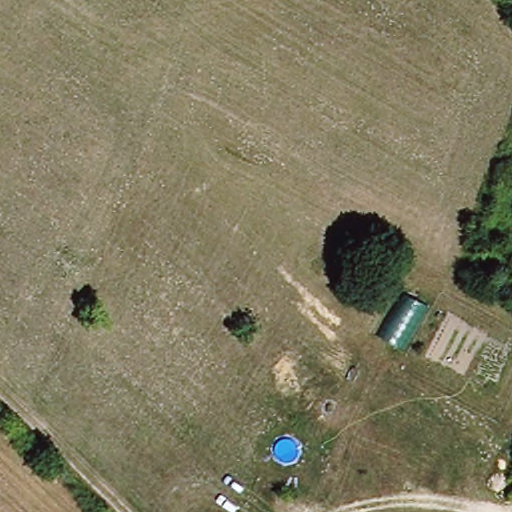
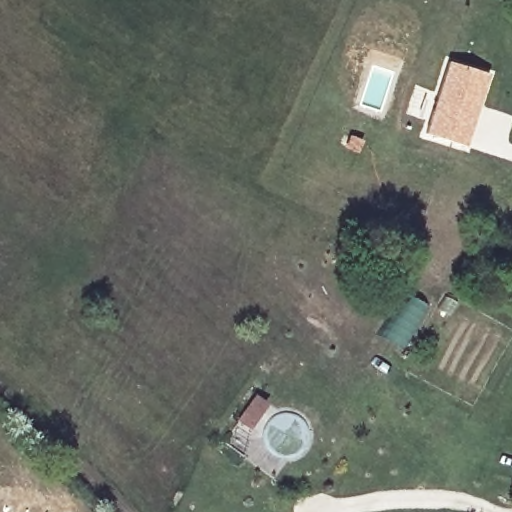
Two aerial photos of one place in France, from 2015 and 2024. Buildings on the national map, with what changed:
new [(447,60),(491,73),(467,147),(424,133),(447,60)]

